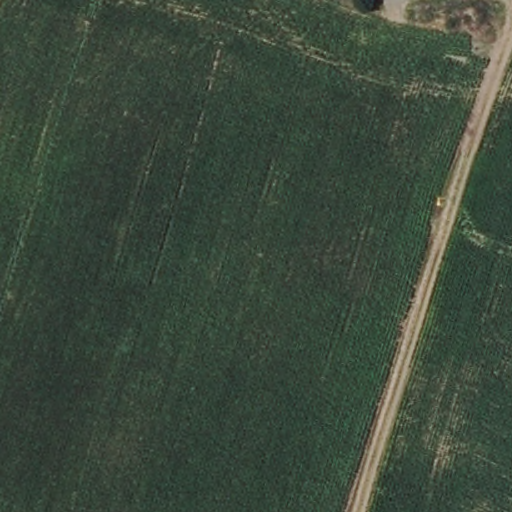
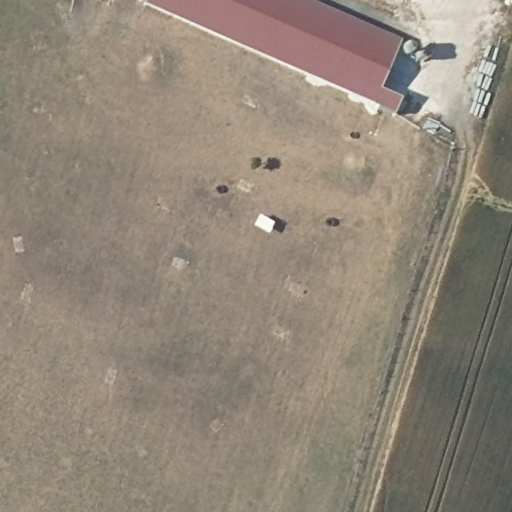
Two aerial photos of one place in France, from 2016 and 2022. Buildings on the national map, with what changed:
new [(395,114),(145,5),(147,0),(309,0),(400,39),(381,89),(401,99),(395,114)]

